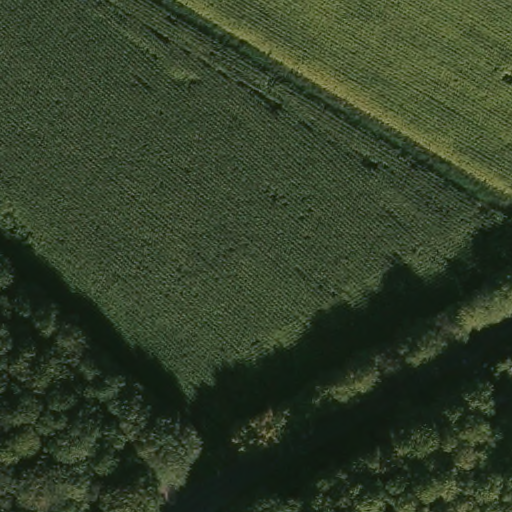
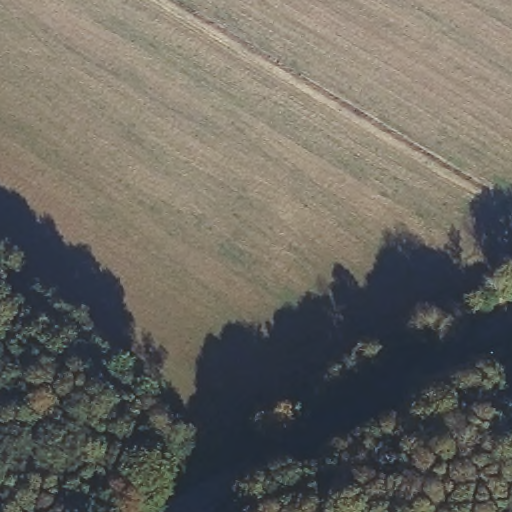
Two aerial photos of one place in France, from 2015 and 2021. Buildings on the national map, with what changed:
[]

